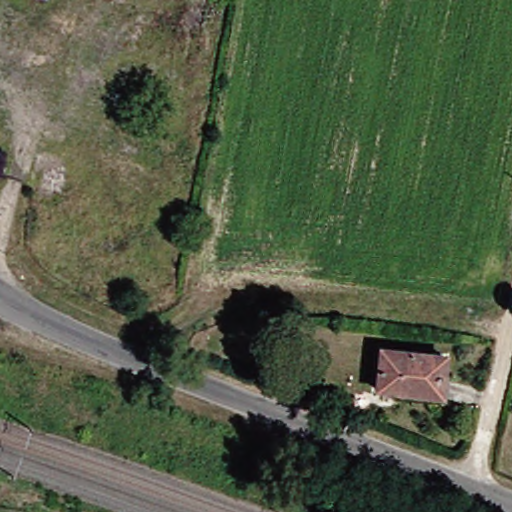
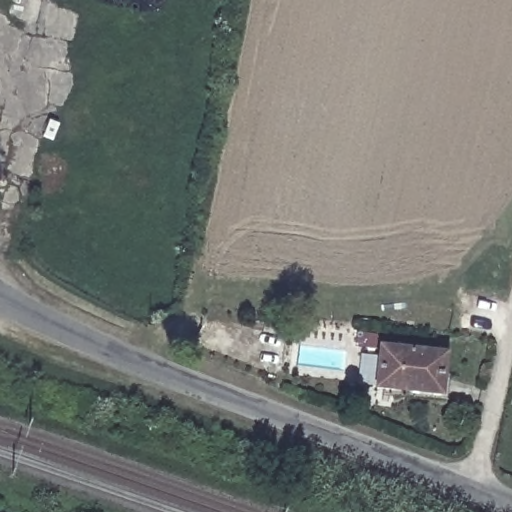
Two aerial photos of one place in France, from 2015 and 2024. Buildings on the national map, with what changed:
unchanged [(379,350),(442,357),(438,396),(375,388),(379,350)]

